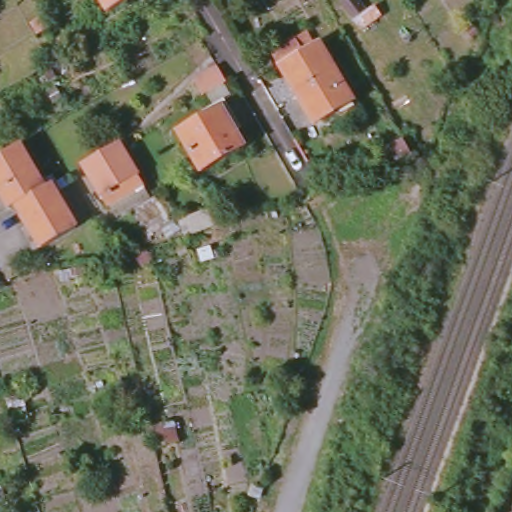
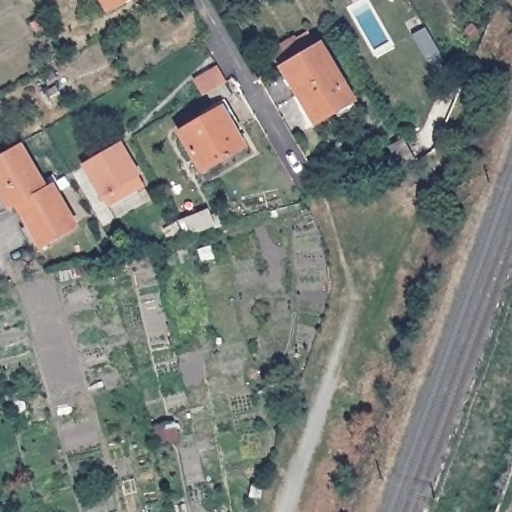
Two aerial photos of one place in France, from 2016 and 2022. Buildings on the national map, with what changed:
unchanged [(95,0),(135,0),(105,18),(95,0)]
unchanged [(47,34),(37,40),(30,27),(40,22),(47,34)]
unchanged [(301,96),(296,99),(278,69),(269,54),(294,40),(302,54),(319,45),(354,107),(338,116),(319,127),(301,96)]
unchanged [(218,72),(226,87),(202,101),(193,85),(218,72)]
unchanged [(220,110),(244,151),(201,176),(178,134),(220,110)]
unchanged [(384,140),(398,132),(406,146),(410,152),(395,161),(384,140)]
unchanged [(54,189),(78,233),(41,254),(16,210),(10,215),(0,197),(0,161),(21,149),(47,193),(54,189)]
unchanged [(126,150),(146,182),(143,183),(150,195),(115,215),(89,172),(126,150)]
unchanged [(212,224),(186,234),(178,221),(206,210),(212,224)]

